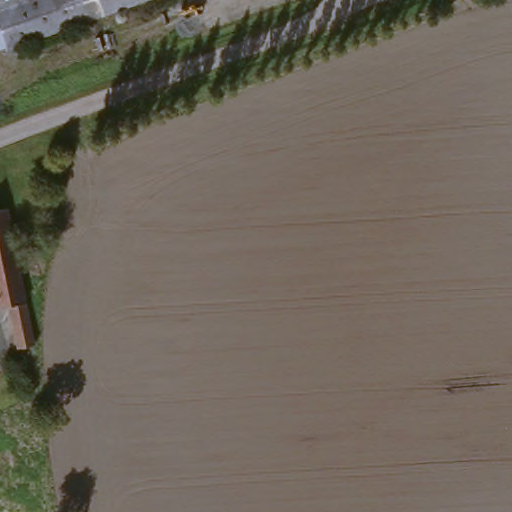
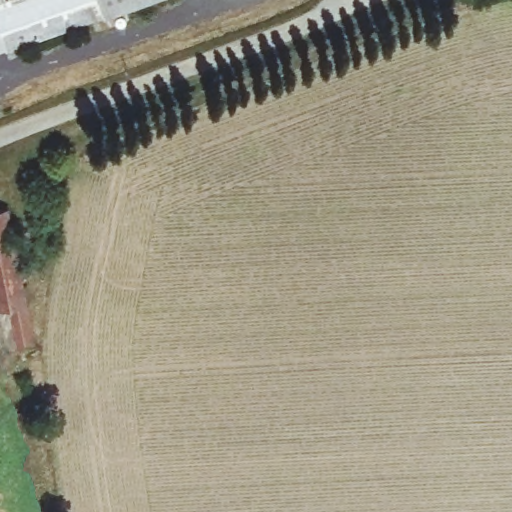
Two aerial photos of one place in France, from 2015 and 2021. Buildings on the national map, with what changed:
unchanged [(0,48),(0,0),(91,0),(96,15),(0,48)]
unchanged [(91,0),(137,0),(96,15),(91,0)]
unchanged [(14,267),(27,265),(31,282),(17,285),(29,353),(13,356),(4,311),(0,312),(0,217),(5,216),(14,267)]

